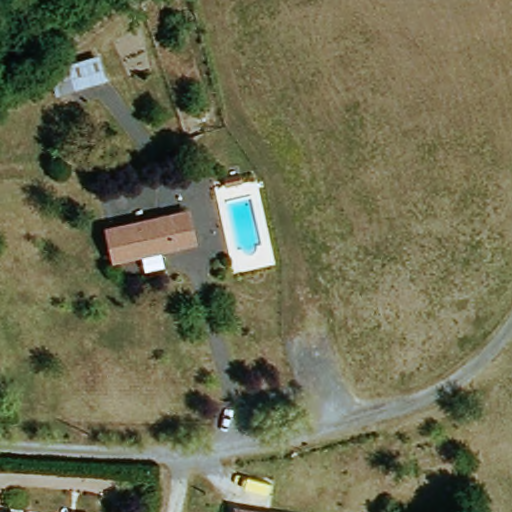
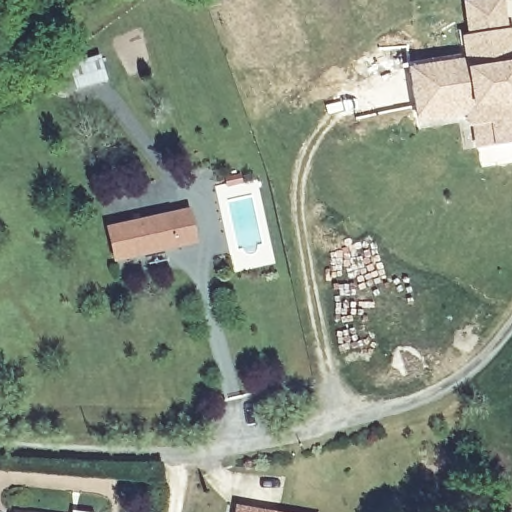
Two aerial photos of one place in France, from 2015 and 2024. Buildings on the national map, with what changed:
new [(460,36),(509,27),(512,44),(512,138),(494,142),(490,118),(472,121),(470,105),(415,114),(407,68),(464,58),(460,36)]
unchanged [(100,85),(67,94),(62,72),(94,62),(100,85)]
unchanged [(110,230),(172,215),(189,211),(196,242),(179,246),(117,261),(110,230)]

